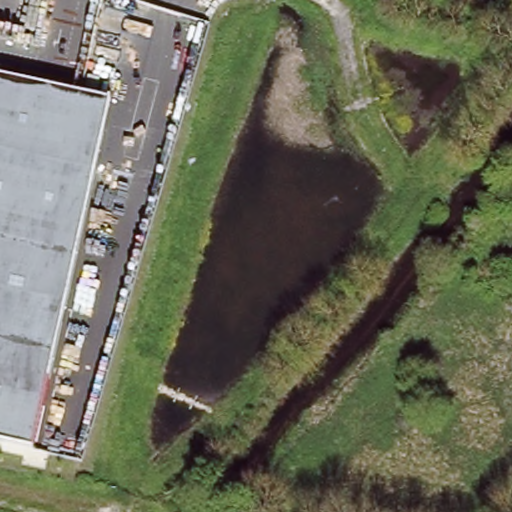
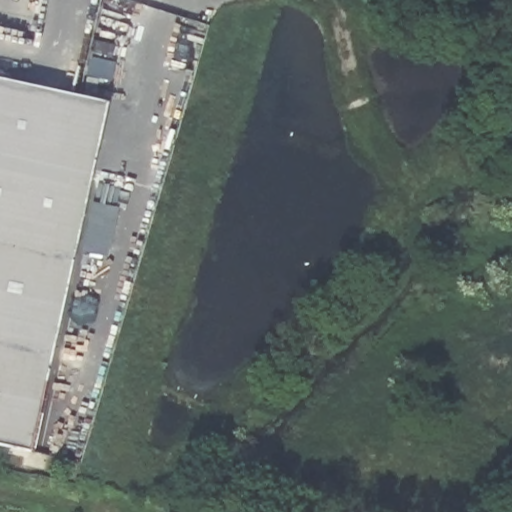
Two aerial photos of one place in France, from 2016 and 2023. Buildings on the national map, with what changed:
unchanged [(34,452),(0,445),(0,77),(110,101),(34,452)]

